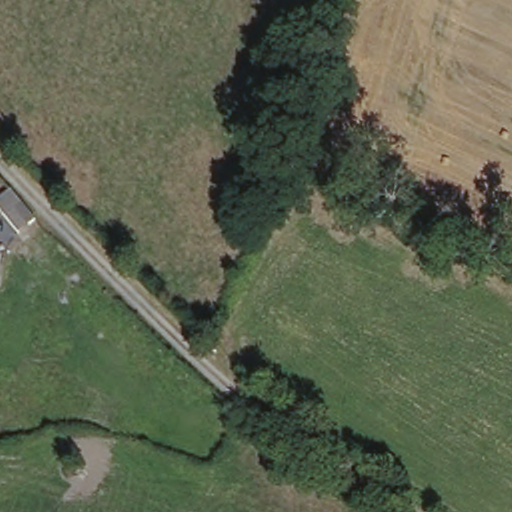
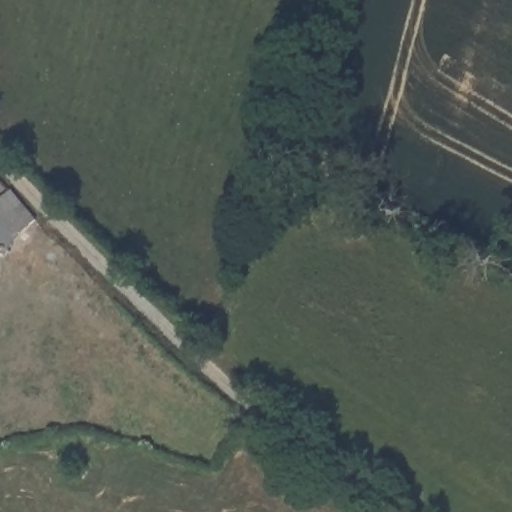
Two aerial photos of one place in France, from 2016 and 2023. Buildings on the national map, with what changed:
unchanged [(12,220),(4,212),(0,212),(0,205),(15,190),(29,203),(44,217),(26,232),(12,220)]

